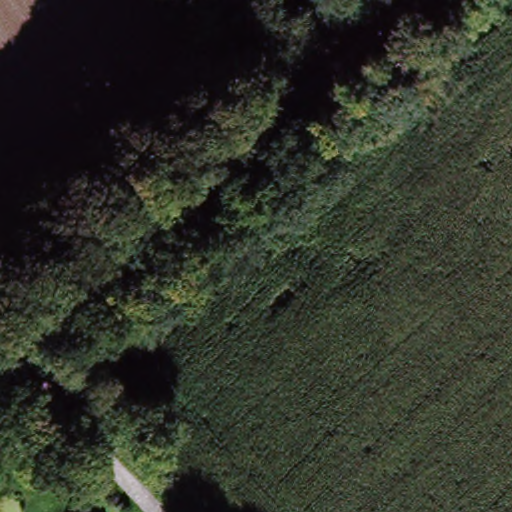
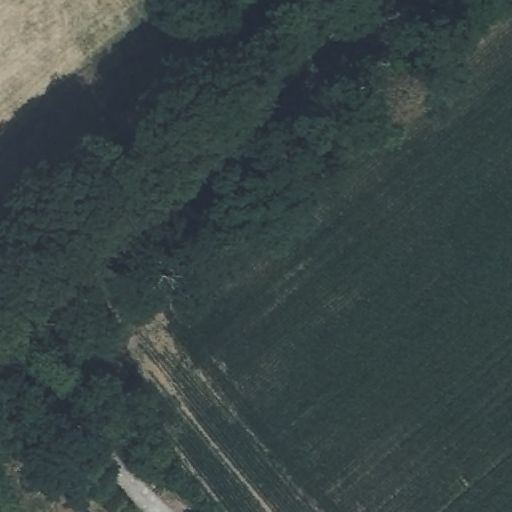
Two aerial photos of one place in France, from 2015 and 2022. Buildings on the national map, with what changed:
[]

